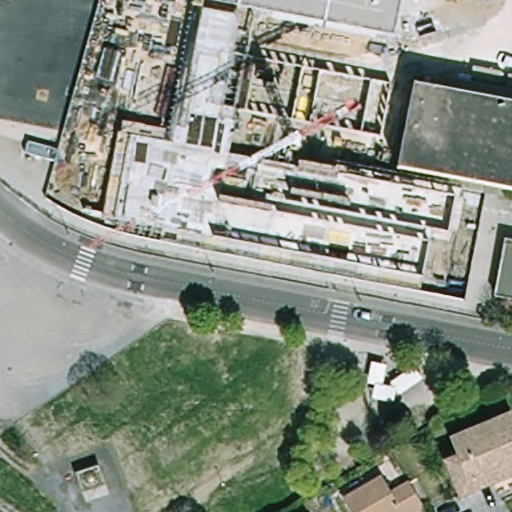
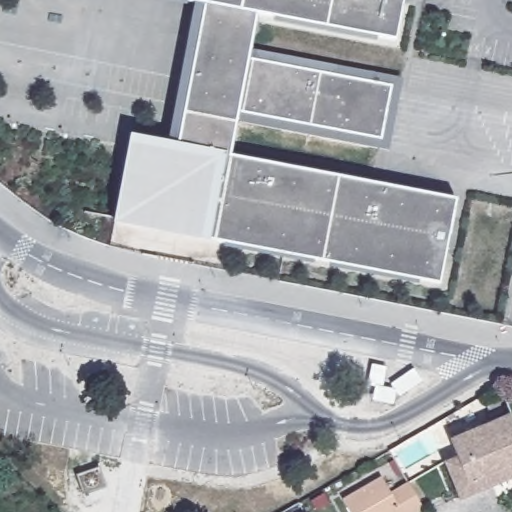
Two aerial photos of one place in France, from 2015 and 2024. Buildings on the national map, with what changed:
new [(255,10),(250,60),(393,86),(381,137),(240,111),(232,155),(464,194),(458,234),(450,234),(448,244),(429,242),(420,290),(163,240),(164,232),(104,221),(122,121),(170,130),(192,0),(401,0),(394,39),(255,10)]
demolished [(350,0),(461,0),(458,20),(350,0)]
demolished [(26,60),(27,52),(20,51),(28,10),(385,79),(378,115),(377,119),(369,117),(368,125),(374,126),(373,130),(366,166),(349,162),(358,115),(255,96),(246,143),(79,111),(88,64),(40,55),(31,101),(11,98),(18,59),(26,60)]
demolished [(512,103),(512,193),(503,191),(512,143),(446,130),(437,179),(399,172),(406,135),(409,122),(416,85),(512,103)]
demolished [(504,240),(512,242),(512,302),(493,298),(504,240)]
unchanged [(462,496),(448,461),(461,456),(454,437),(512,413),(512,475),(475,490),(462,496)]
unchanged [(83,493),(77,475),(98,468),(104,486),(83,493)]
unchanged [(345,496),(381,475),(392,493),(411,481),(425,505),(412,512),(354,512),(345,496)]

